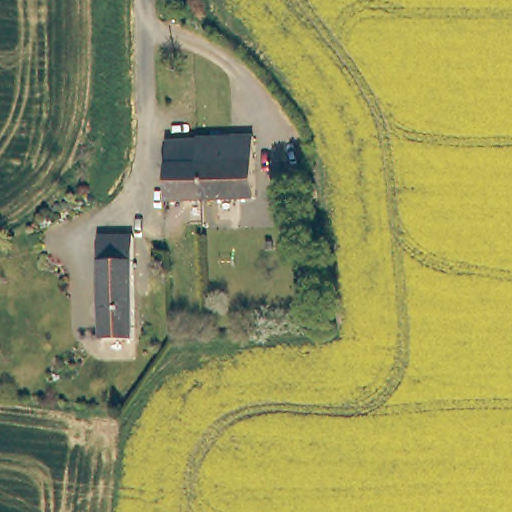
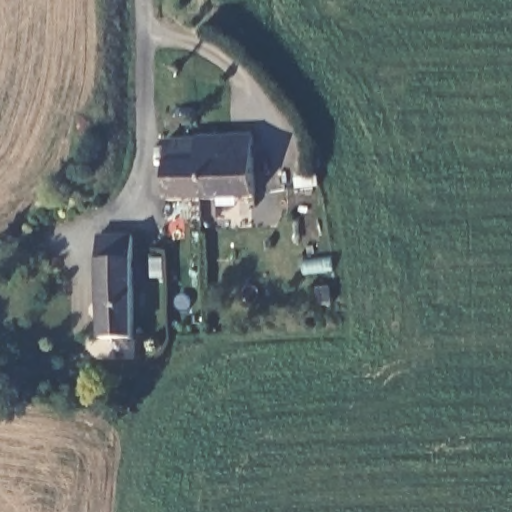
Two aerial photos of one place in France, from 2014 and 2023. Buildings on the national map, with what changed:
unchanged [(167,193),(169,157),(171,133),(177,134),(208,136),(258,138),(255,198),(167,193)]
unchanged [(102,287),(99,234),(128,232),(137,337),(103,336),(102,287)]

